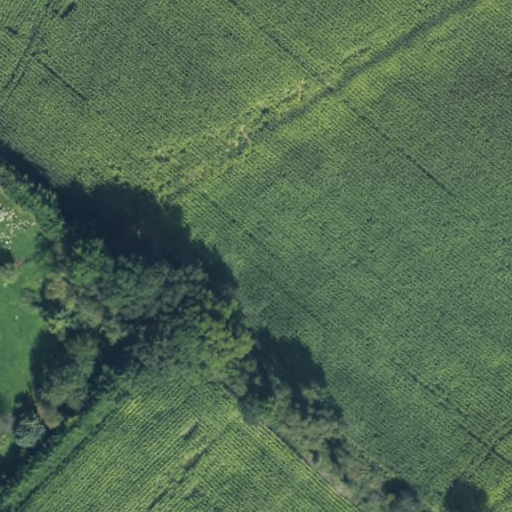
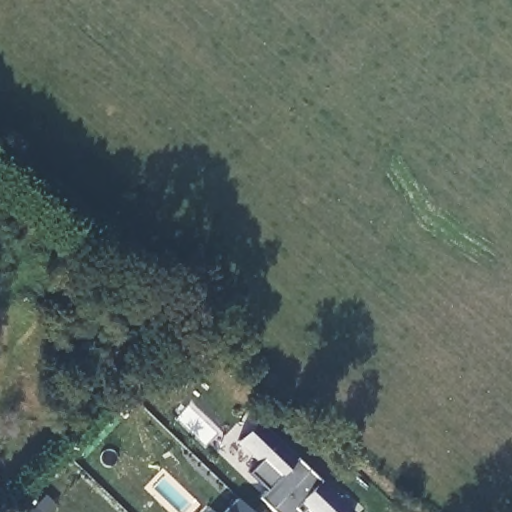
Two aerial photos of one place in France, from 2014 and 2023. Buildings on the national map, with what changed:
new [(304,505),(298,512),(276,512),(259,496),(264,490),(248,472),(259,462),(238,441),(259,419),(355,512),(312,512),(304,505)]
new [(224,511),(236,496),(253,512),(223,512),(224,511)]

